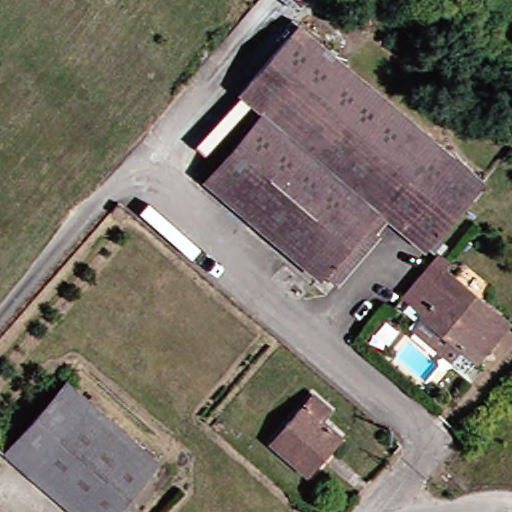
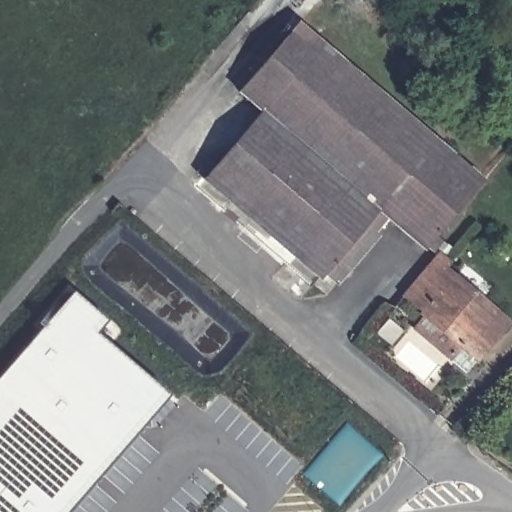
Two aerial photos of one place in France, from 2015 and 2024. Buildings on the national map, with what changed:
unchanged [(413,247),(377,215),(361,234),(365,237),(325,282),(316,275),(311,280),(188,170),(200,157),(206,162),(254,109),(229,86),(287,16),(471,180),(413,247)]
unchanged [(500,325),(470,359),(410,307),(434,280),(422,270),(433,257),(444,266),(439,272),(500,325)]
new [(115,346),(173,400),(76,512),(0,512),(0,379),(74,291),(125,337),(115,346)]
demolished [(65,507),(0,449),(0,447),(60,379),(125,438),(65,507)]
demolished [(300,396),(320,413),(313,420),(330,435),(298,471),(262,440),(300,396)]
demolished [(445,491),(429,508),(410,491),(425,474),(445,491)]

